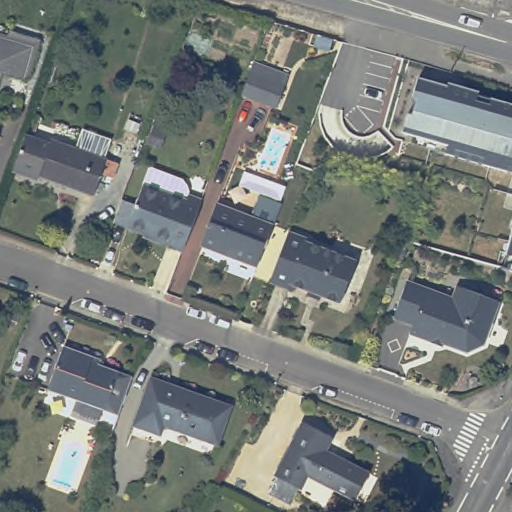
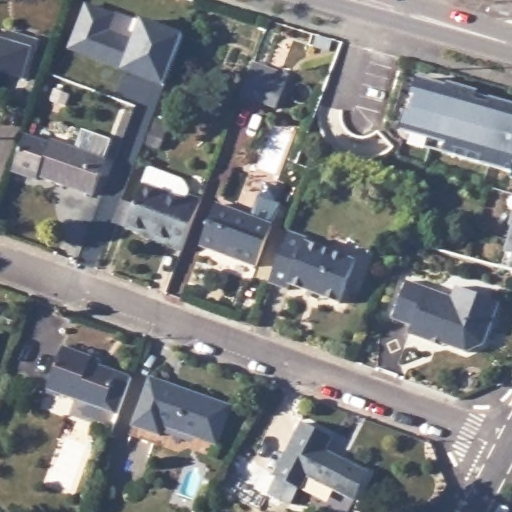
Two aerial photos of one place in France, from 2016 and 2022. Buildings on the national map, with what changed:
new [(85,3),(115,15),(109,33),(132,43),(142,18),(182,35),(163,85),(121,69),(69,49),(85,3)]
unchanged [(313,46),(316,34),(332,38),(328,50),(313,46)]
unchanged [(7,40),(9,36),(37,45),(25,84),(0,76),(0,38),(7,40)]
unchanged [(275,107),(240,94),(253,61),(287,75),(275,107)]
unchanged [(441,151),(400,140),(417,76),(512,104),(512,173),(465,158),(441,151)]
unchanged [(153,128),(156,120),(166,124),(164,132),(158,148),(147,144),(153,128)]
unchanged [(36,179),(11,170),(24,134),(48,142),(50,138),(89,152),(104,159),(92,194),(38,175),(36,179)]
unchanged [(465,158),(456,188),(419,178),(427,150),(435,153),(432,167),(436,168),(441,151),(465,158)]
unchanged [(148,243),(132,237),(117,231),(121,222),(126,208),(141,213),(155,175),(187,187),(191,193),(194,198),(193,204),(206,208),(186,262),(174,257),(147,247),(148,243)]
unchanged [(250,222),(258,201),(280,209),(271,230),(255,271),(200,250),(215,208),(250,222)]
unchanged [(297,290),(278,283),(298,231),(316,239),(315,242),(365,262),(350,304),(299,284),(297,290)]
unchanged [(512,239),(512,271),(503,269),(512,239)]
unchanged [(421,327),(402,320),(416,281),(461,297),(465,286),(509,302),(492,346),(478,352),(442,339),(441,342),(418,334),(421,327)]
unchanged [(113,414),(44,386),(59,345),(92,358),(91,364),(126,377),(113,414)]
unchanged [(130,437),(134,428),(150,382),(229,410),(216,449),(163,430),(160,439),(156,447),(130,437)]
unchanged [(293,503),(272,492),(281,475),(279,473),(307,422),(335,437),(329,450),(373,473),(360,499),(311,475),(305,486),(303,486),(293,503)]

